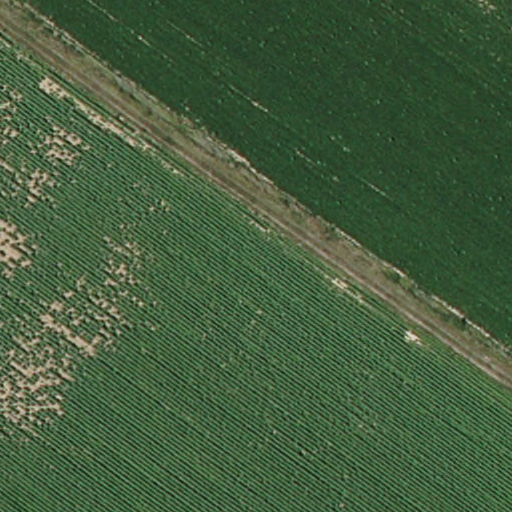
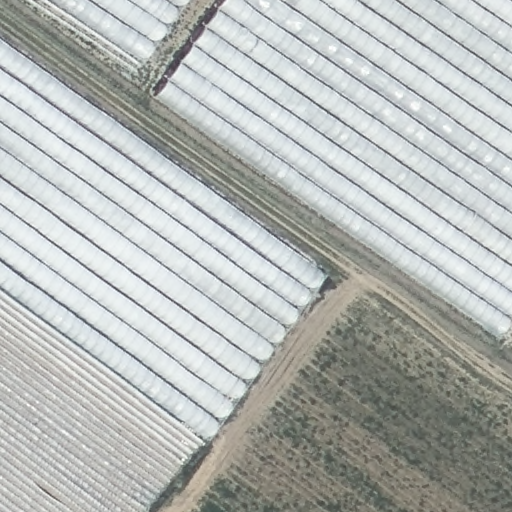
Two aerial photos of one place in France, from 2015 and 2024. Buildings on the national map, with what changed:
new [(186,0),(140,66),(44,0),(186,0)]
new [(222,0),(512,0),(512,315),(496,338),(153,98),(222,0)]
new [(203,444),(0,291),(0,42),(322,277),(203,444)]

